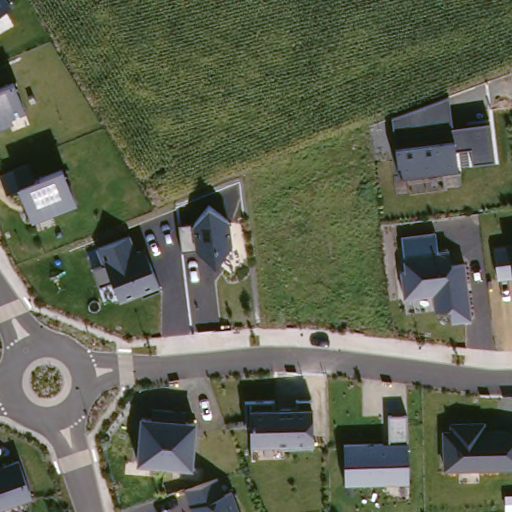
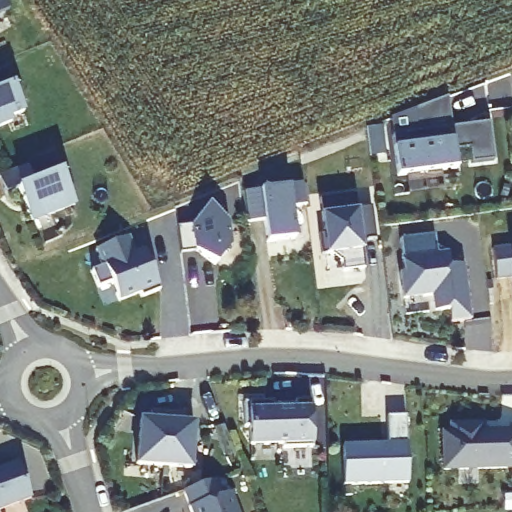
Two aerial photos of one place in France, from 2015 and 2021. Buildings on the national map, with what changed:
unchanged [(0,13),(0,0),(6,0),(10,7),(0,13)]
unchanged [(13,122),(0,127),(0,86),(13,80),(26,110),(10,117),(13,122)]
unchanged [(473,163),(469,150),(453,151),(456,169),(399,175),(394,146),(391,118),(447,97),(451,128),(487,124),(492,163),(473,163)]
unchanged [(34,222),(17,188),(9,192),(2,176),(30,164),(38,180),(63,170),(76,203),(34,222)]
new [(299,180),(302,202),(287,204),(290,235),(263,239),(260,217),(243,219),(239,188),(299,180)]
new [(322,229),(317,195),(353,190),(354,205),(369,203),(374,236),(359,238),(363,266),(341,269),(340,259),(328,251),(319,252),(316,230),(322,229)]
unchanged [(232,245),(214,263),(196,248),(184,249),(180,225),(192,224),(209,207),(229,220),(232,245)]
unchanged [(158,289),(141,297),(136,292),(120,301),(113,283),(99,290),(90,271),(101,266),(96,250),(128,237),(134,253),(144,250),(158,289)]
unchanged [(452,322),(451,309),(434,310),(433,296),(404,297),(398,240),(434,237),(437,253),(446,253),(448,267),(462,264),(471,320),(452,322)]
unchanged [(496,282),(493,252),(509,249),(510,258),(512,258),(512,280),(496,282)]
unchanged [(249,430),(243,430),(244,403),(274,402),(274,408),(296,407),(297,401),(310,402),(309,441),(249,444),(249,430)]
unchanged [(138,418),(150,420),(152,411),(186,413),(187,421),(194,422),(190,470),(135,466),(138,418)]
unchanged [(343,445),(387,443),(386,416),(406,415),(407,485),(344,486),(343,445)]
unchanged [(442,433),(449,433),(449,425),(482,425),(482,432),(504,432),(504,469),(442,468),(442,433)]
unchanged [(30,499),(0,510),(0,468),(15,462),(30,499)]
unchanged [(215,479),(223,495),(229,492),(236,512),(191,512),(183,492),(215,479)]

